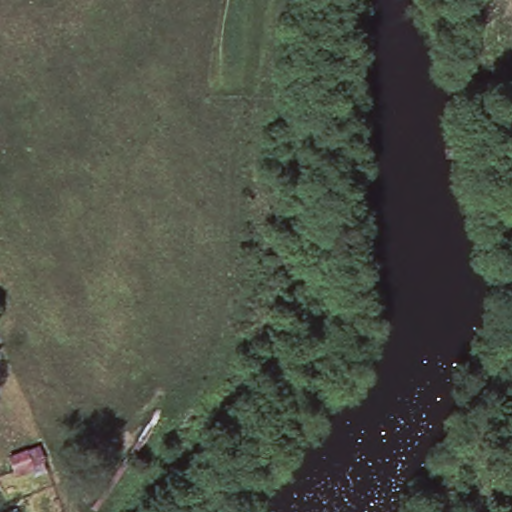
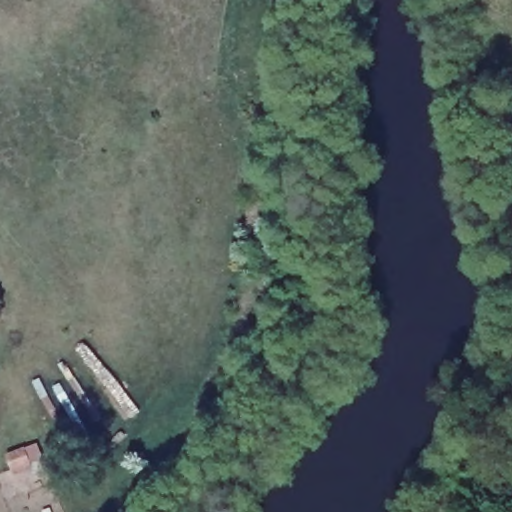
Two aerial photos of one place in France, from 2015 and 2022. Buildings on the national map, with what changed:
unchanged [(7,433),(13,447),(0,452),(0,436),(7,433)]

